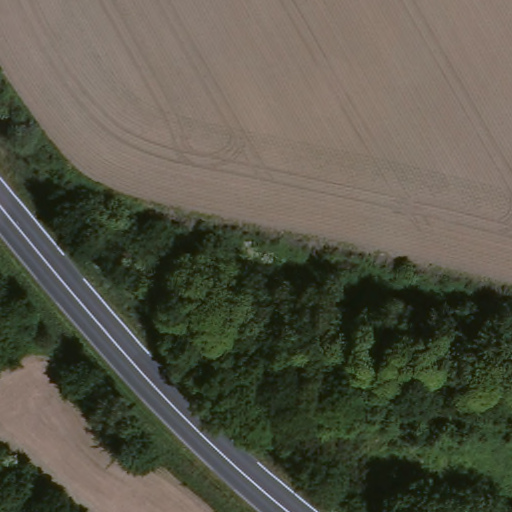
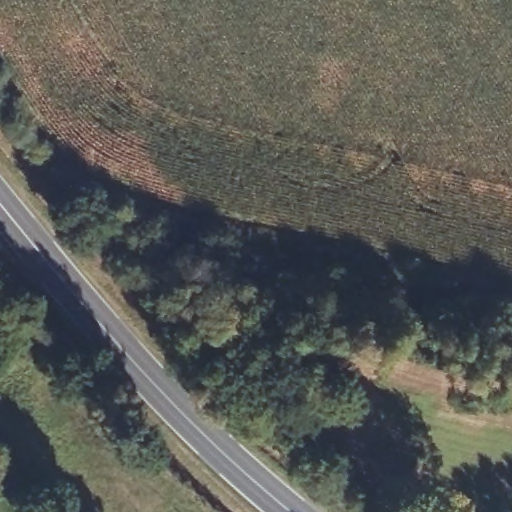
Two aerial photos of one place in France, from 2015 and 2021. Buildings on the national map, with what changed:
unchanged [(28,486),(42,496),(31,508),(19,496),(28,486)]

